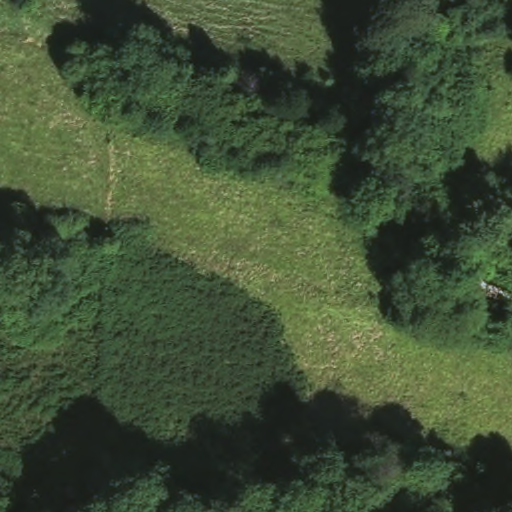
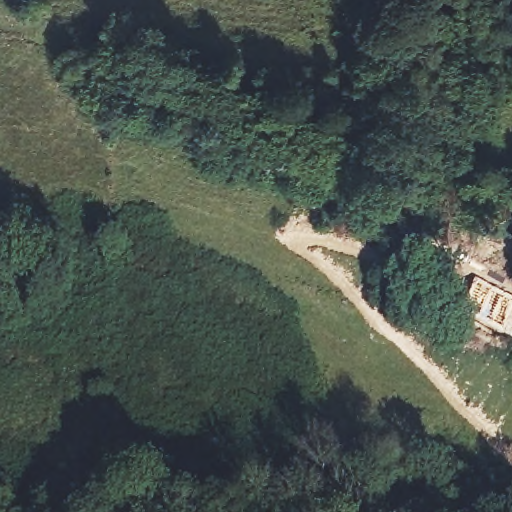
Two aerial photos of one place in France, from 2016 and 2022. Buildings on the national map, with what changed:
unchanged [(453,306),(463,278),(508,297),(498,325),(453,306)]

